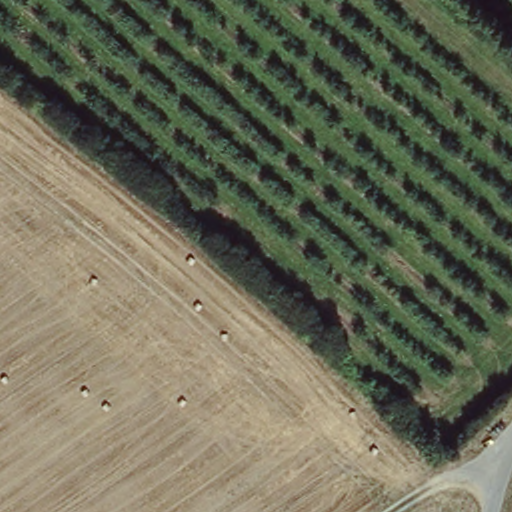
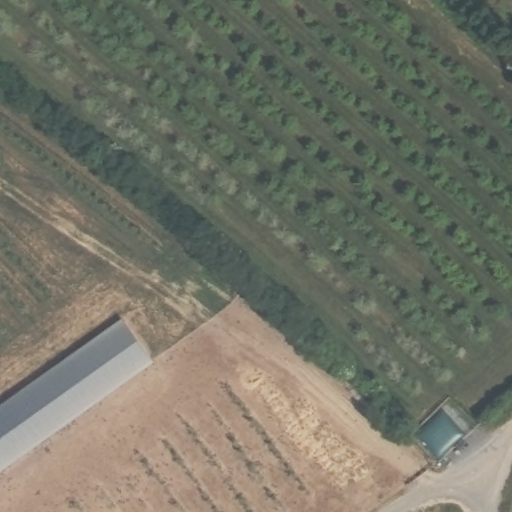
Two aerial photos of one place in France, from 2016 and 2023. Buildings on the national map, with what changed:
new [(0,462),(0,398),(117,313),(149,356),(0,462)]

